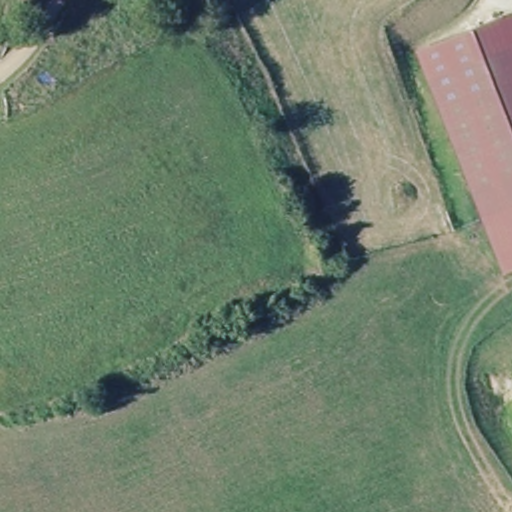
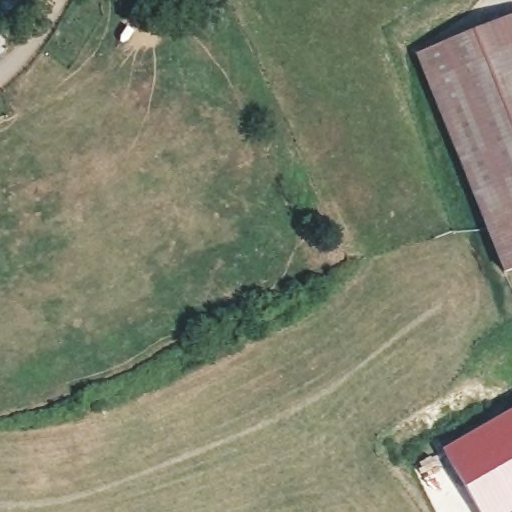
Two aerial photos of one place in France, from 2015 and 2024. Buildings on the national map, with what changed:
unchanged [(430,77),(420,49),(509,19),(512,29),(512,50),(430,77)]
unchanged [(477,221),(430,77),(512,50),(512,210),(477,221)]
unchanged [(497,280),(477,221),(512,210),(512,275),(497,280)]
new [(441,449),(512,401),(512,512),(476,512),(441,449)]

